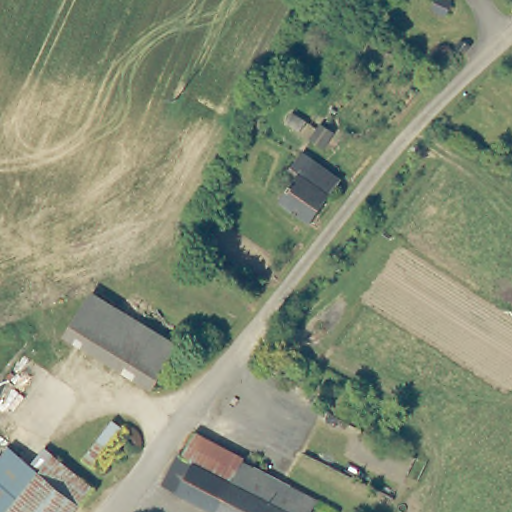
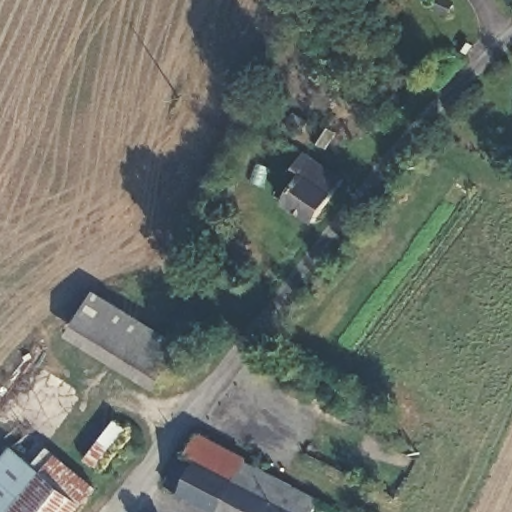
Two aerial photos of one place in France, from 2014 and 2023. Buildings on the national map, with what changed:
unchanged [(424,5),(429,0),(437,0),(442,6),(432,14),(431,14),(425,7),(424,5)]
unchanged [(331,129),(319,149),(305,141),(318,122),(331,129)]
unchanged [(279,202),(293,176),(286,172),(298,152),(335,175),(305,219),(279,202)]
unchanged [(150,388),(65,337),(87,302),(172,352),(150,388)]
unchanged [(97,472),(85,465),(114,421),(126,428),(97,472)]
unchanged [(273,474),(320,497),(313,512),(214,512),(161,484),(189,428),(273,474)]
unchanged [(30,467),(41,449),(86,481),(68,508),(26,479),(16,495),(0,484),(0,455),(6,448),(30,467)]
unchanged [(68,508),(65,512),(0,512),(0,484),(16,495),(26,479),(68,508)]

